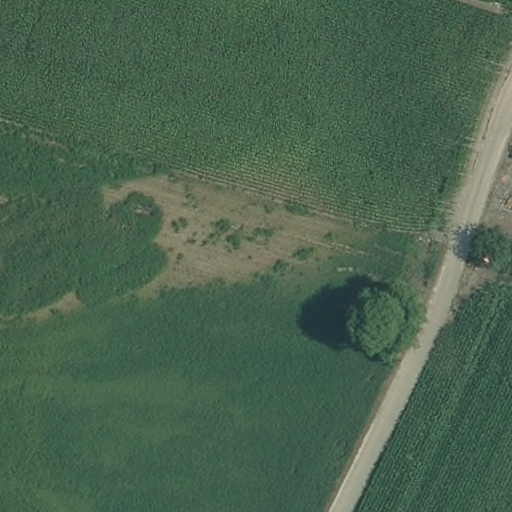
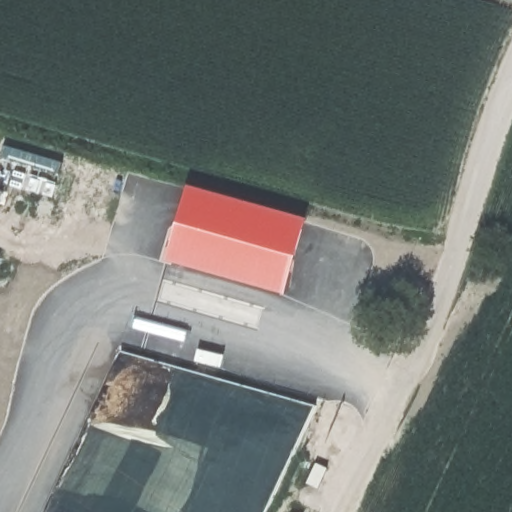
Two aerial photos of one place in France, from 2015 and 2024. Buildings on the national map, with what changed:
new [(310,220),(290,300),(157,263),(183,190),(310,220)]

